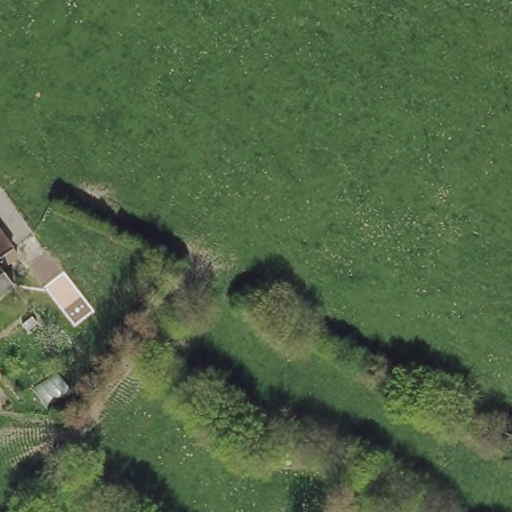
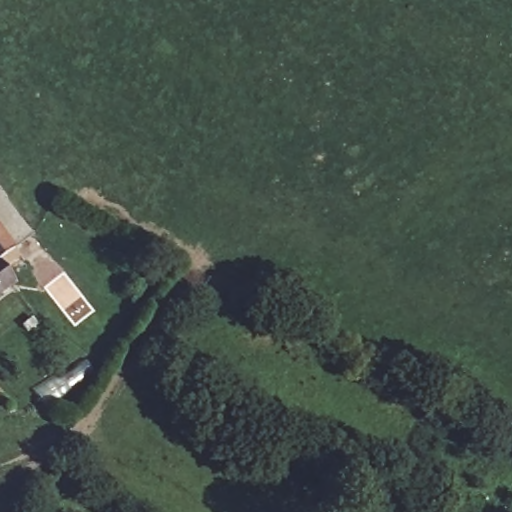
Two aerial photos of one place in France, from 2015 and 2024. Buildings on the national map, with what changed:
unchanged [(17,252),(0,265),(0,228),(17,252)]
unchanged [(20,291),(0,305),(0,265),(20,291)]

